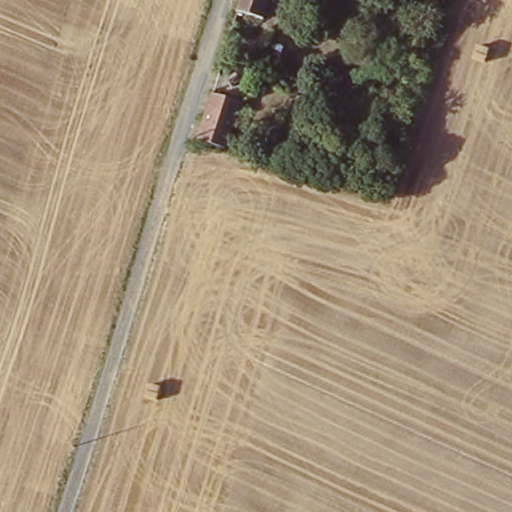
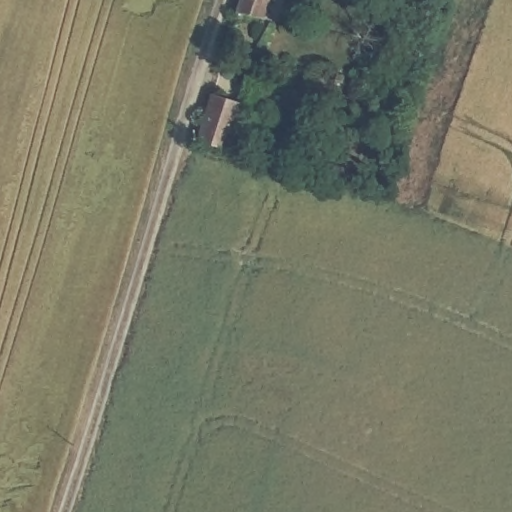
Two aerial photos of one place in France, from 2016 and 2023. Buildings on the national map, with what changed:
unchanged [(238,0),(268,0),(259,26),(231,17),(238,0)]
unchanged [(437,8),(416,69),(383,57),(403,0),(412,0),(437,8)]
unchanged [(194,149),(207,95),(243,101),(226,155),(194,149)]

